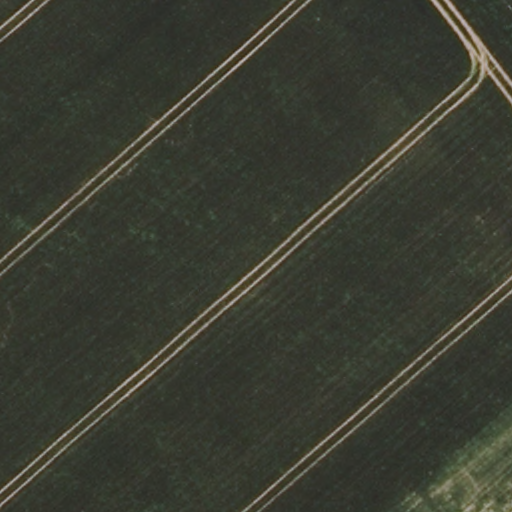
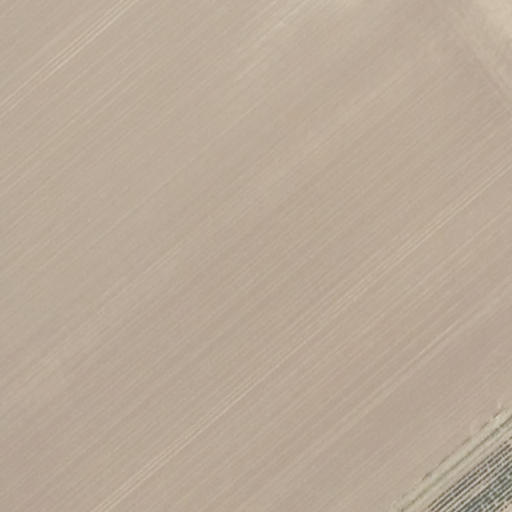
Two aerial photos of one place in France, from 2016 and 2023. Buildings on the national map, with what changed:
[]

